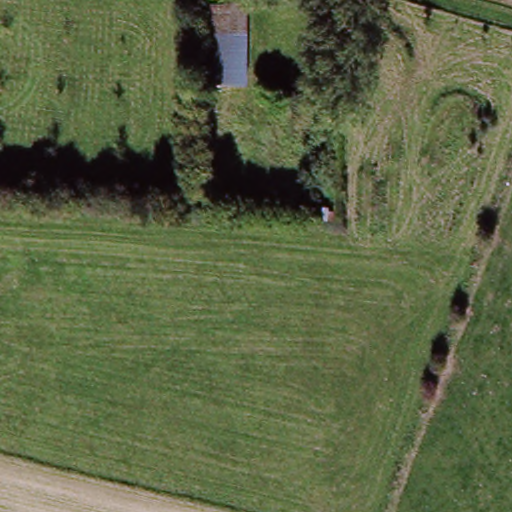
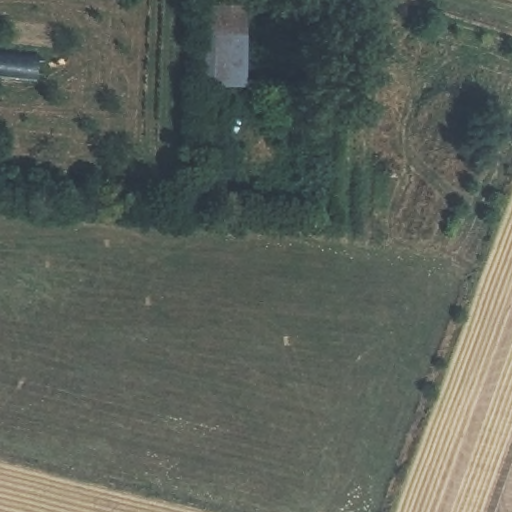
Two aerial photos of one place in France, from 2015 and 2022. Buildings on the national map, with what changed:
unchanged [(231,21),(230,69),(201,69),(202,20),(231,21)]

